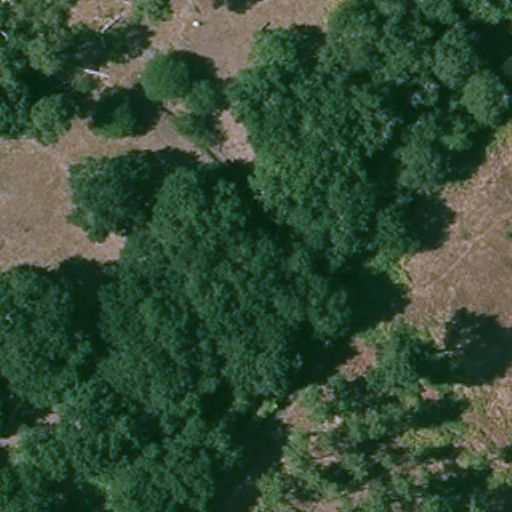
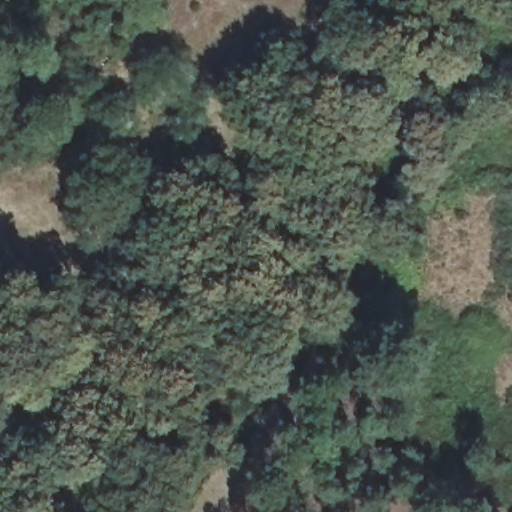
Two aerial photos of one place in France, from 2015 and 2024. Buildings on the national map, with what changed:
[]

